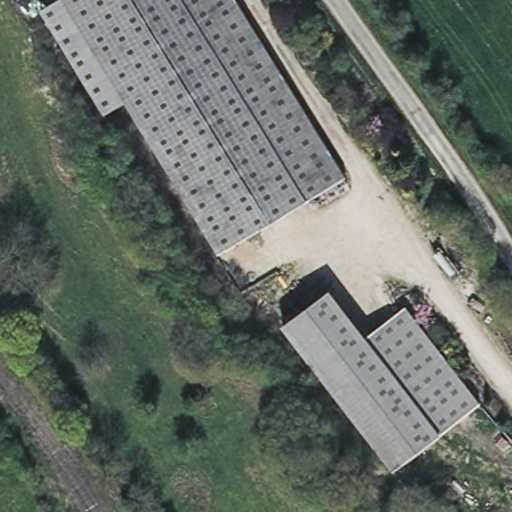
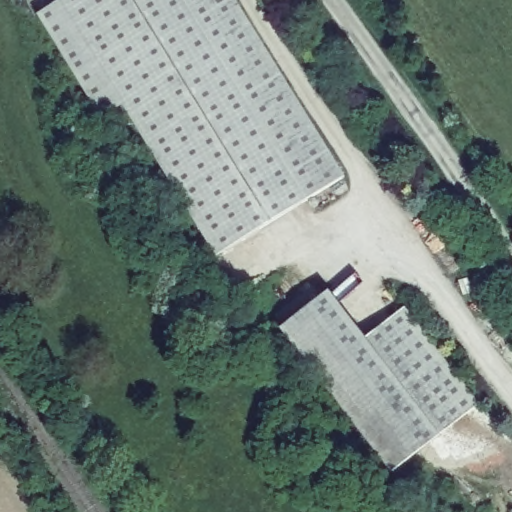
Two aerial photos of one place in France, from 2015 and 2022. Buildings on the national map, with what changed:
unchanged [(237,0),(346,176),(215,257),(58,2),(62,0),(237,0)]
unchanged [(480,405),(440,433),(392,474),(280,327),(330,288),(367,337),(405,306),(480,405)]

